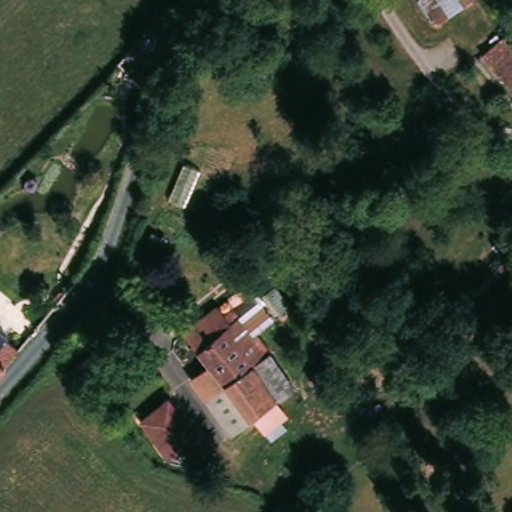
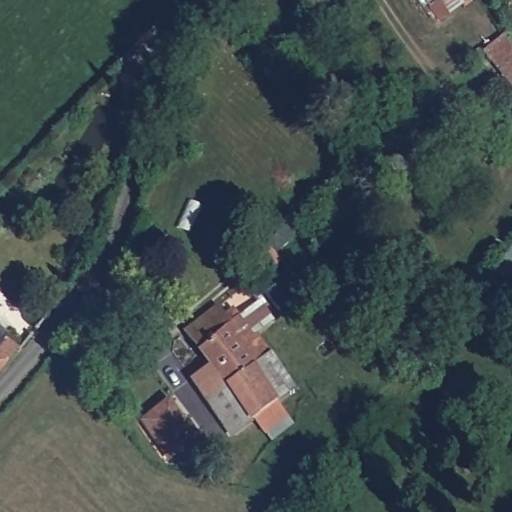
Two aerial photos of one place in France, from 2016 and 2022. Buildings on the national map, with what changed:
unchanged [(424,0),(468,0),(438,22),(424,0)]
unchanged [(505,36),(512,44),(512,85),(486,54),(505,36)]
unchanged [(212,365),(190,333),(220,309),(232,325),(242,318),(257,306),(262,302),(271,317),(254,335),(266,351),(279,368),(295,389),(234,434),(207,397),(192,379),(212,365)]
unchanged [(0,358),(7,365),(0,372),(0,358)]
unchanged [(199,437),(207,439),(212,447),(202,455),(189,440),(174,451),(150,415),(171,398),(182,414),(199,437)]

